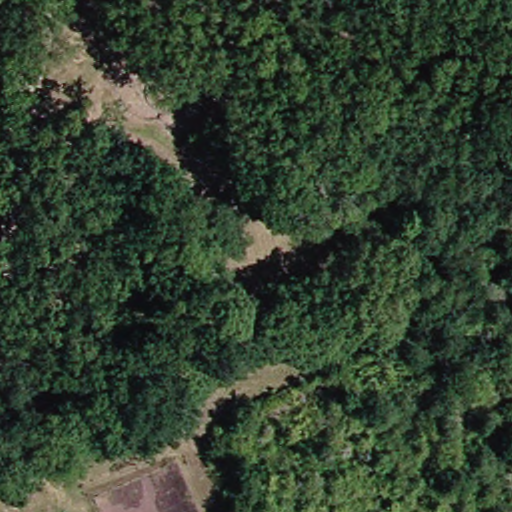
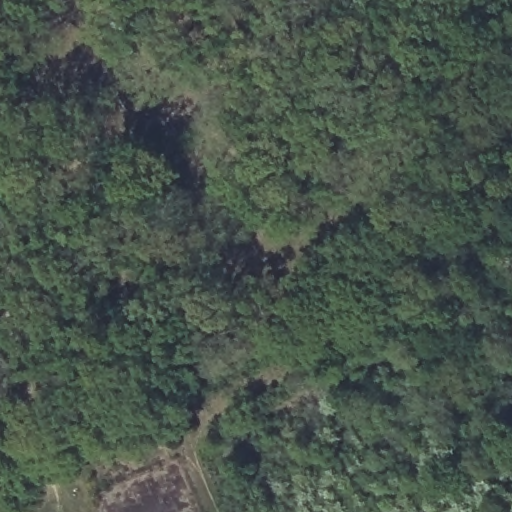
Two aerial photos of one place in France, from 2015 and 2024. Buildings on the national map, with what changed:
unchanged [(32,243),(18,243),(17,218),(31,217),(32,243)]

